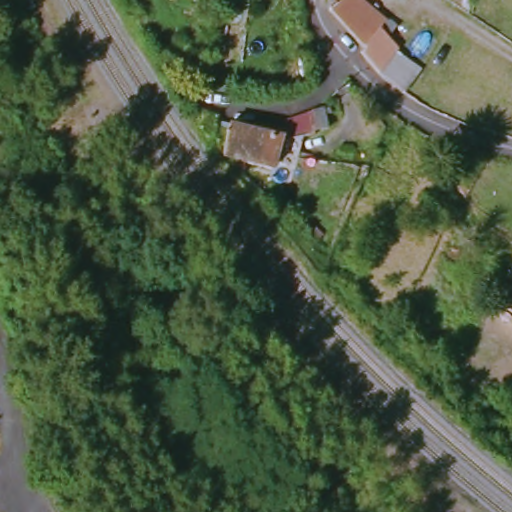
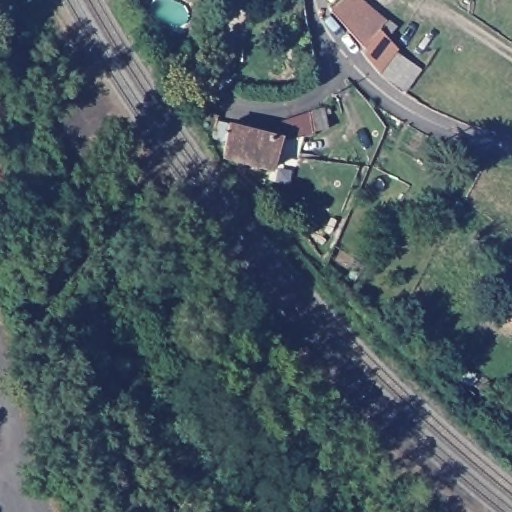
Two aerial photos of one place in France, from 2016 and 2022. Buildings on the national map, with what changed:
unchanged [(321,0),(341,0),(324,14),(321,0)]
unchanged [(324,14),(341,0),(355,0),(379,20),(359,48),(324,14)]
unchanged [(388,27),(379,37),(389,46),(387,50),(414,71),(397,93),(386,85),(371,74),(356,50),(359,48),(379,20),(388,27)]
unchanged [(218,159),(226,126),(249,131),(272,136),(273,124),(296,115),(306,112),(311,130),(301,133),(274,140),(268,170),(241,164),(218,159)]

